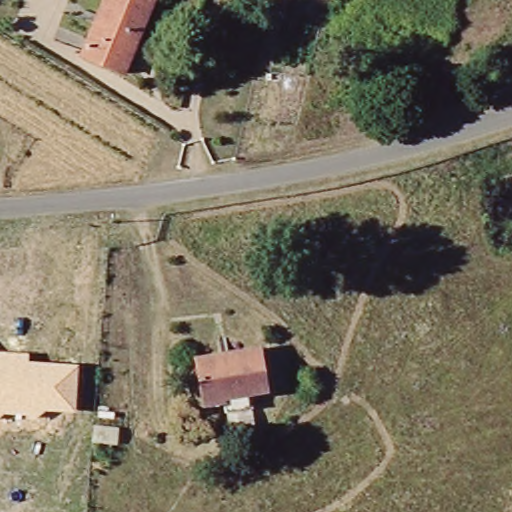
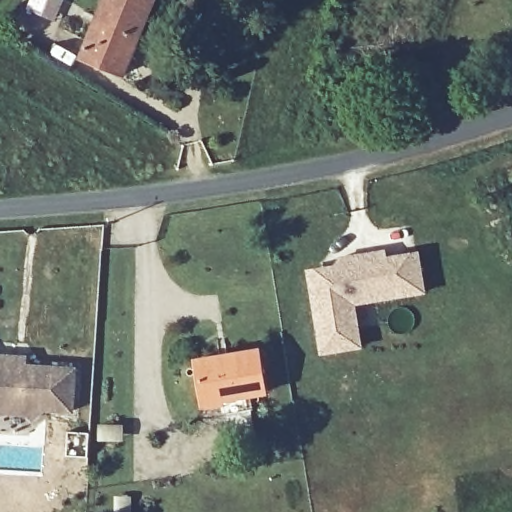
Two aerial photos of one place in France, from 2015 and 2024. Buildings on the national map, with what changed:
unchanged [(77,55),(100,0),(150,0),(119,73),(77,55)]
new [(388,256),(420,250),(427,293),(355,305),(363,347),(320,355),(305,270),(334,264),(338,256),(386,249),(388,256)]
unchanged [(262,392),(219,399),(220,403),(203,405),(197,359),(256,351),(262,392)]
unchanged [(78,366),(75,413),(44,412),(33,422),(26,415),(3,415),(0,417),(0,352),(28,354),(28,362),(78,366)]

